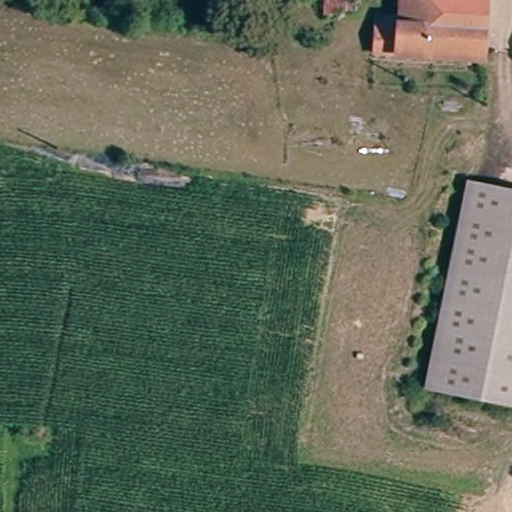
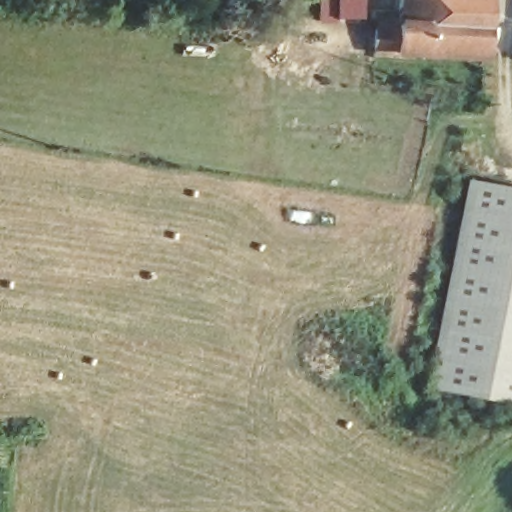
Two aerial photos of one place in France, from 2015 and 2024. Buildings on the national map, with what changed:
unchanged [(376,56),(379,31),(399,34),(403,0),(491,0),(483,68),(376,56)]
unchanged [(512,189),(512,407),(424,389),(465,180),(512,189)]

